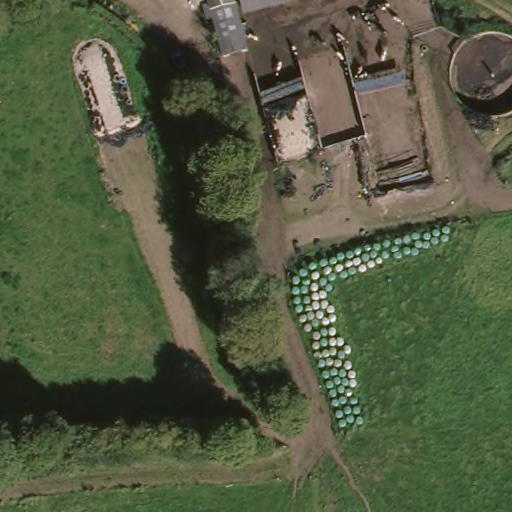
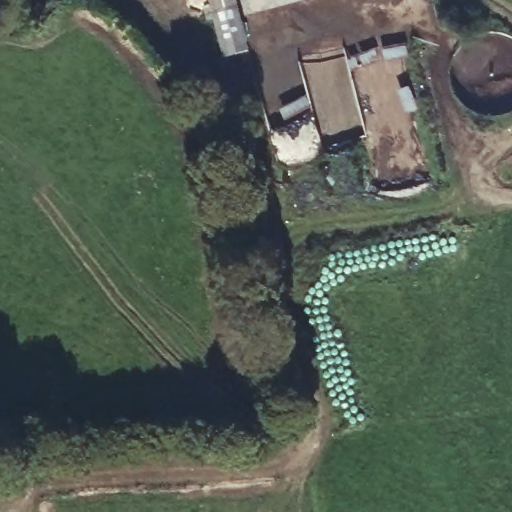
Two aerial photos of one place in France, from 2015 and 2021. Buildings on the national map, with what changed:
unchanged [(204,0),(233,0),(248,49),(244,50),(218,56),(204,0)]
unchanged [(240,0),(271,0),(241,8),(240,0)]

